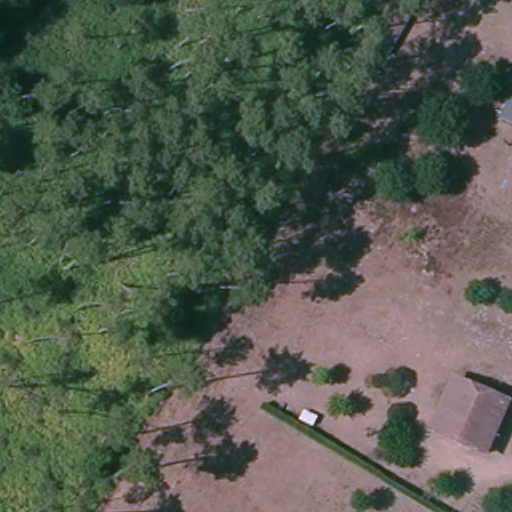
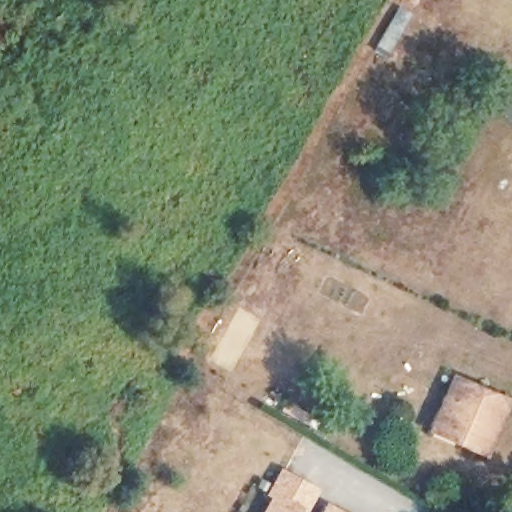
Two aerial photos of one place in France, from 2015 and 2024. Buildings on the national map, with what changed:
unchanged [(427,435),(436,414),(450,381),(465,387),(503,404),(480,457),(457,447),(441,440),(427,435)]
new [(274,492),(286,470),(304,481),(320,490),(308,512),(304,509),(302,512),(269,512),(279,495),(274,492)]
new [(332,506),(344,512),(329,512),(332,506)]

